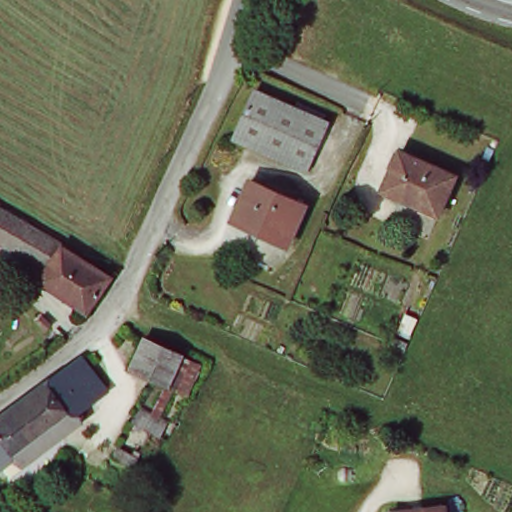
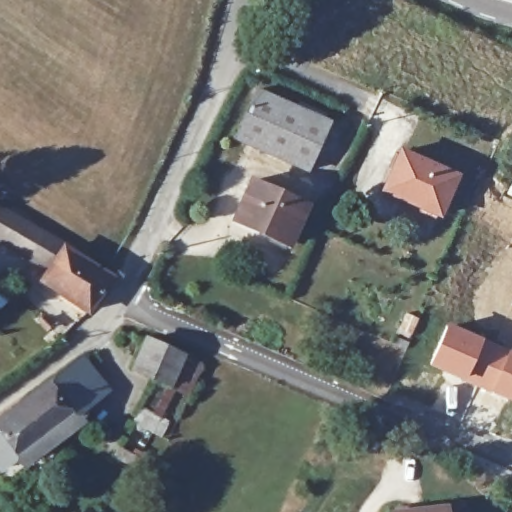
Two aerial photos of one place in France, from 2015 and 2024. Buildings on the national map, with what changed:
unchanged [(252,91),(326,122),(305,171),(231,138),(252,91)]
unchanged [(457,176),(438,216),(383,192),(401,152),(457,176)]
new [(512,179),(512,196),(506,193),(512,179)]
unchanged [(289,243),(233,219),(250,180),(307,206),(289,243)]
unchanged [(0,212),(2,210),(62,246),(60,249),(110,278),(80,309),(40,284),(47,273),(25,260),(0,245),(0,212)]
new [(445,322),(483,338),(464,382),(426,366),(445,322)]
unchanged [(165,388),(129,371),(138,338),(182,357),(165,388)]
new [(483,338),(512,350),(512,403),(464,382),(483,338)]
unchanged [(5,458),(0,452),(0,418),(86,352),(109,383),(83,403),(88,410),(75,419),(69,412),(5,458)]
unchanged [(451,512),(407,512),(451,507),(451,512)]

